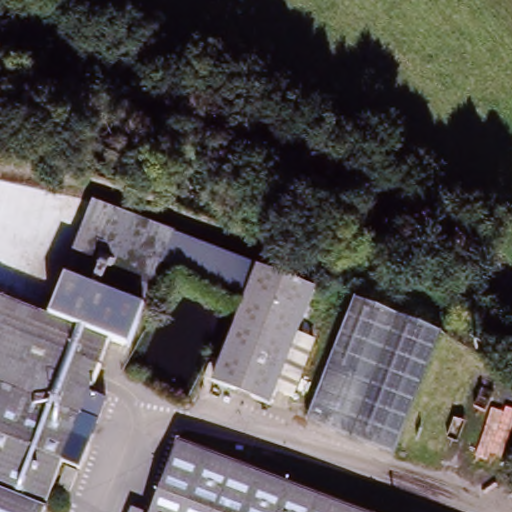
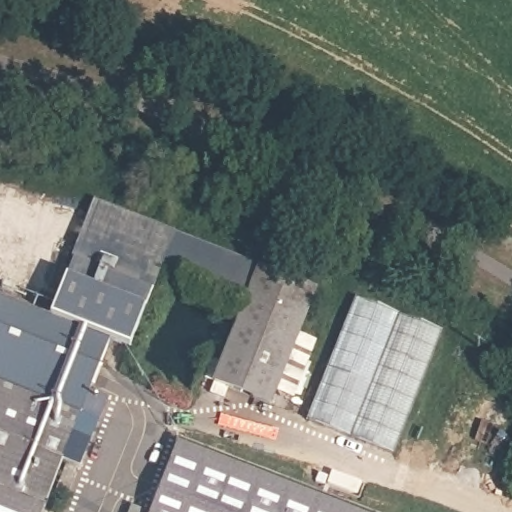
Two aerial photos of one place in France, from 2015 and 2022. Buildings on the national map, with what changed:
unchanged [(65,277),(93,203),(170,234),(140,308),(125,349),(108,343),(86,394),(105,402),(85,446),(68,440),(42,509),(41,512),(0,512),(0,299),(47,318),(65,277)]
unchanged [(245,299),(156,267),(170,234),(316,292),(273,407),(212,385),(245,299)]
unchanged [(446,344),(391,458),(307,418),(362,304),(446,344)]
unchanged [(180,434),(362,512),(144,512),(180,434)]
unchanged [(130,507),(141,512),(128,512),(130,507)]

